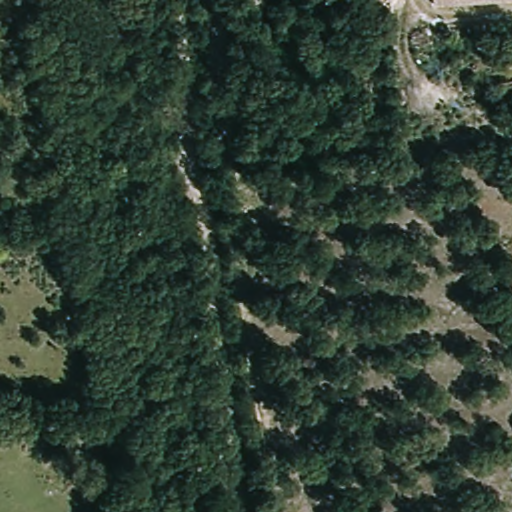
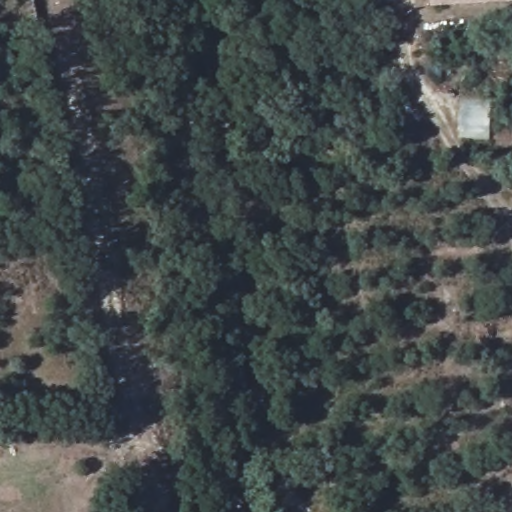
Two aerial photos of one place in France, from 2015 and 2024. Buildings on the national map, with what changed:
unchanged [(425,0),(512,0),(512,3),(425,7),(425,0)]

